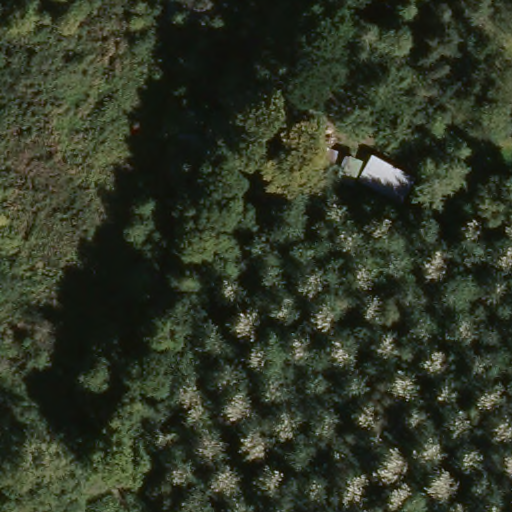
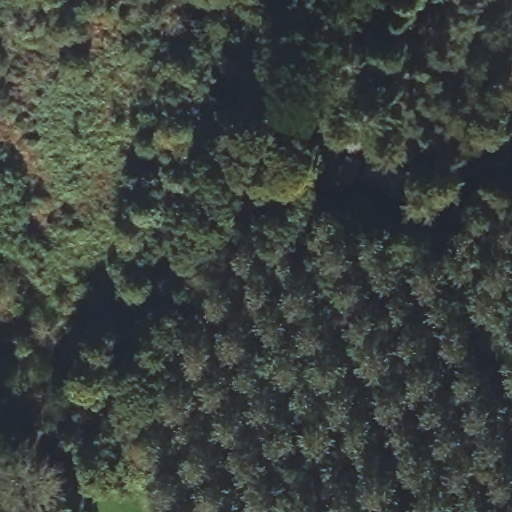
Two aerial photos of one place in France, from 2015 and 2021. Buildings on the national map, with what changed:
unchanged [(361,174),(356,184),(335,173),(347,147),(370,157),(375,148),(422,175),(407,202),(361,174)]

